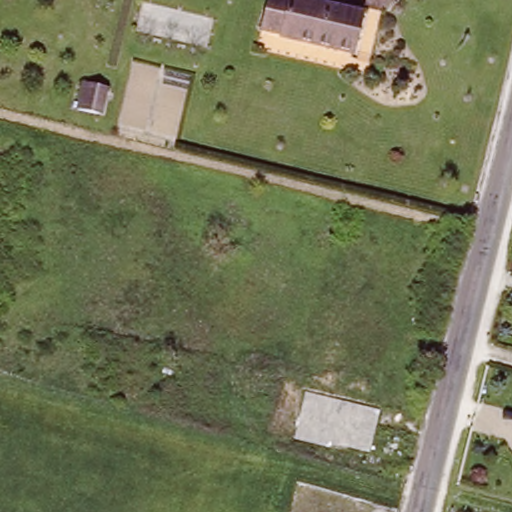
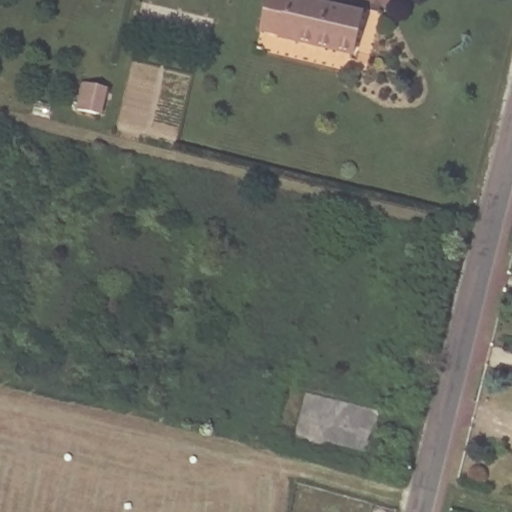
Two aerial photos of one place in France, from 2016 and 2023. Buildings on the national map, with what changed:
unchanged [(259,25),(264,6),(266,0),(307,0),(332,7),(322,47),(277,35),(279,31),(259,25)]
unchanged [(332,7),(360,15),(350,54),(322,47),(332,7)]
unchanged [(109,86),(103,111),(81,106),(87,81),(109,86)]

